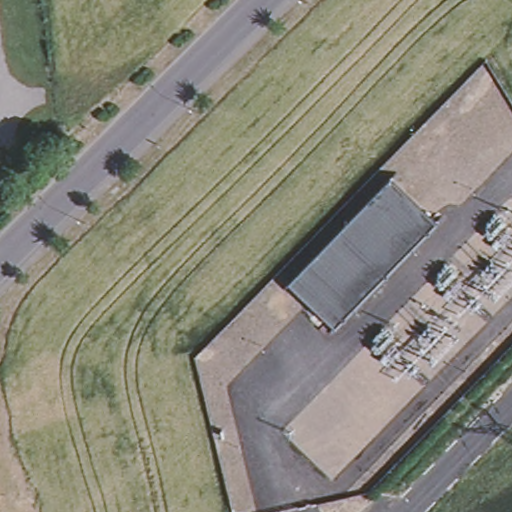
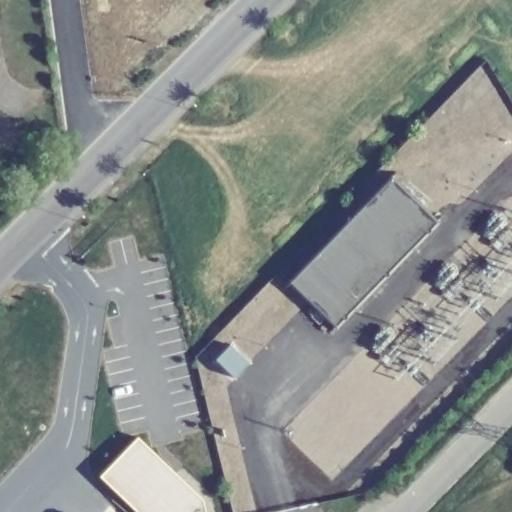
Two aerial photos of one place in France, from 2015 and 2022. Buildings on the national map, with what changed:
unchanged [(435,222),(333,325),(288,281),(390,177),(435,222)]
new [(229,345),(247,363),(232,378),(215,361),(229,345)]
new [(136,437),(203,500),(206,512),(137,512),(100,476),(136,437)]

